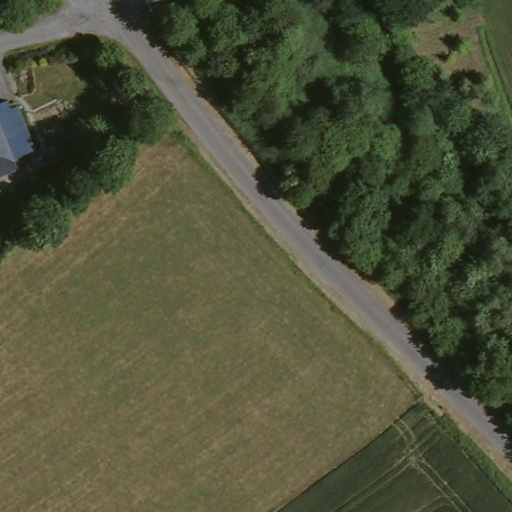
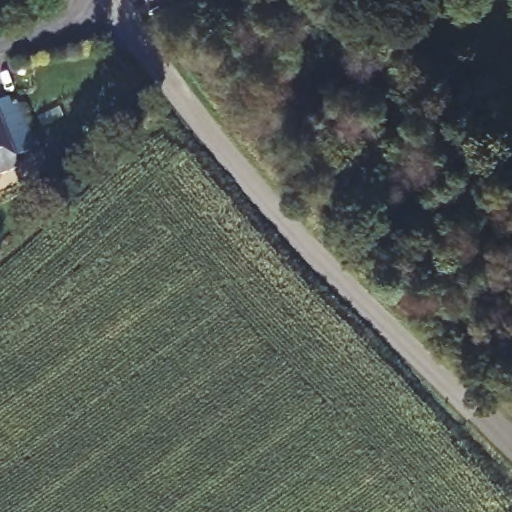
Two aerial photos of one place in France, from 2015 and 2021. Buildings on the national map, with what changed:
unchanged [(18,105),(36,151),(15,161),(0,124),(0,111),(18,105)]
unchanged [(15,161),(17,170),(0,175),(0,124),(15,161)]

